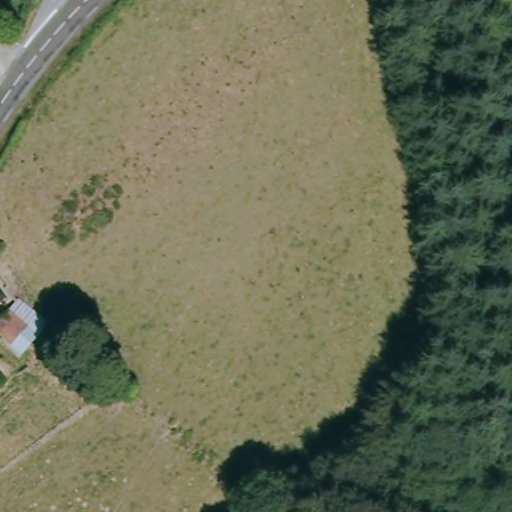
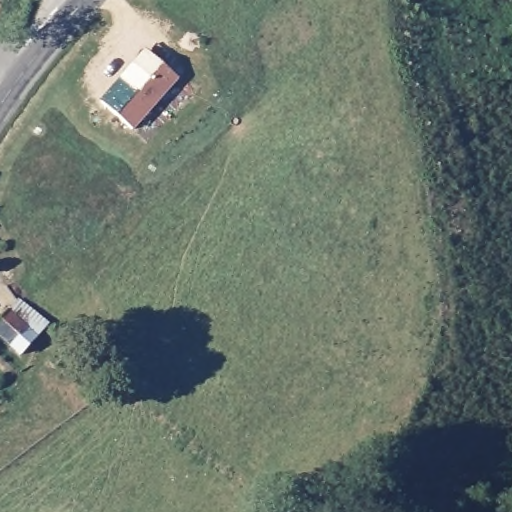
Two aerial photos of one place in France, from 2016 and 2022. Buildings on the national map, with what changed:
new [(132,130),(101,101),(143,50),(178,79),(132,130)]
unchanged [(45,325),(24,345),(15,336),(5,343),(0,340),(0,314),(17,297),(45,325)]

